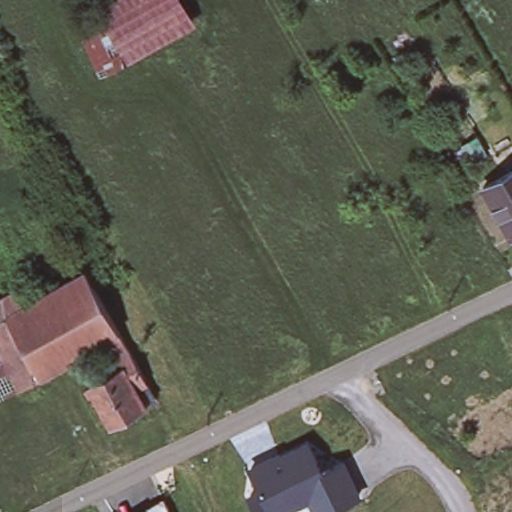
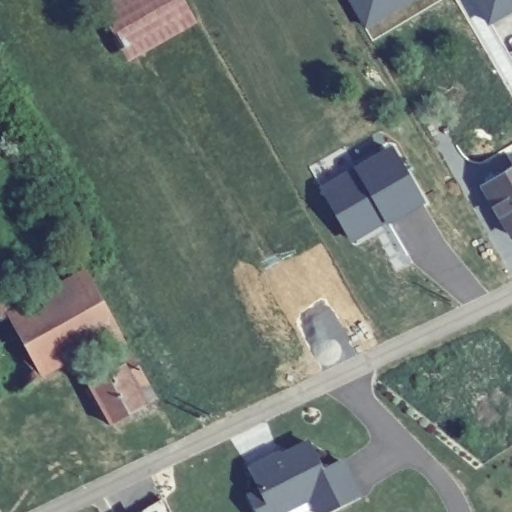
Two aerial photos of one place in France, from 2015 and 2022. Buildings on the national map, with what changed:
unchanged [(184,0),(197,23),(102,74),(72,20),(105,0),(184,0)]
unchanged [(476,137),(487,154),(472,162),(462,145),(476,137)]
new [(423,200),(352,239),(323,189),(392,149),(423,200)]
unchanged [(512,236),(482,187),(512,169),(512,236)]
unchanged [(110,363),(104,353),(107,351),(97,334),(35,370),(2,388),(0,390),(0,290),(12,284),(20,299),(82,265),(115,325),(124,342),(144,377),(132,384),(142,400),(108,418),(90,388),(85,391),(80,384),(85,381),(84,378),(110,363)]
unchanged [(258,486),(250,466),(309,442),(322,468),(343,460),(362,497),(332,512),(314,512),(309,502),(288,512),(256,512),(249,492),(258,486)]
unchanged [(165,504),(168,512),(152,512),(165,504)]

